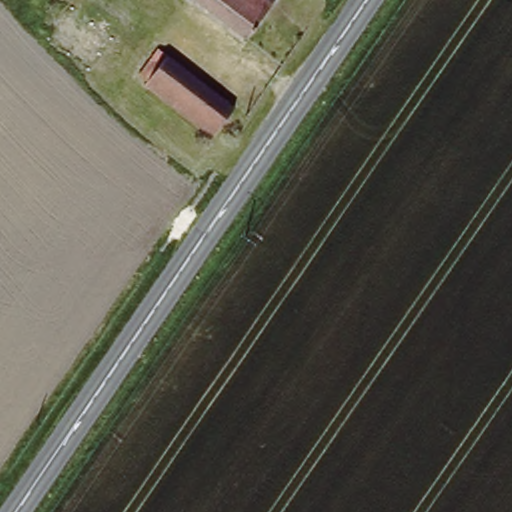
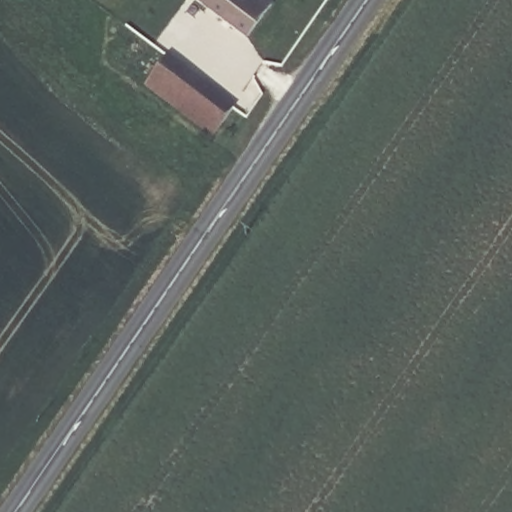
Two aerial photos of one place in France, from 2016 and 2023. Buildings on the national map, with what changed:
unchanged [(246,40),(192,0),(274,0),(271,4),(246,40)]
unchanged [(245,113),(221,144),(212,136),(209,139),(143,87),(147,83),(136,73),(158,48),(245,113)]

